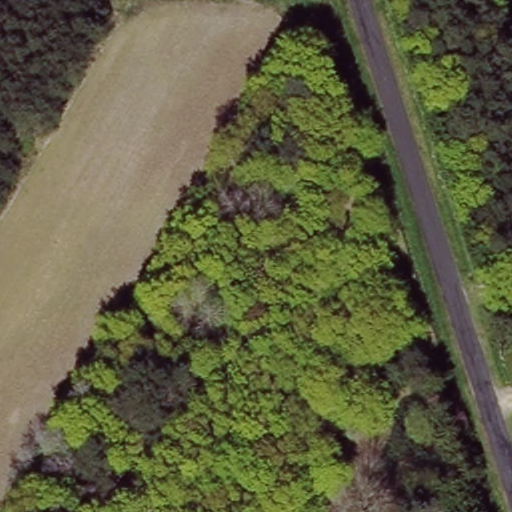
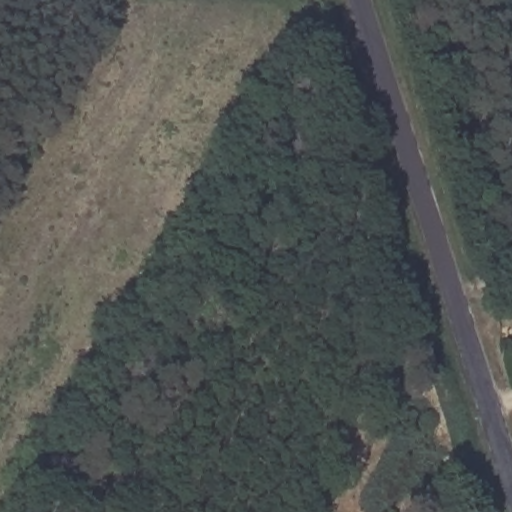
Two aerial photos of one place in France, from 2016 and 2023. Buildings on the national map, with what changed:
[]

